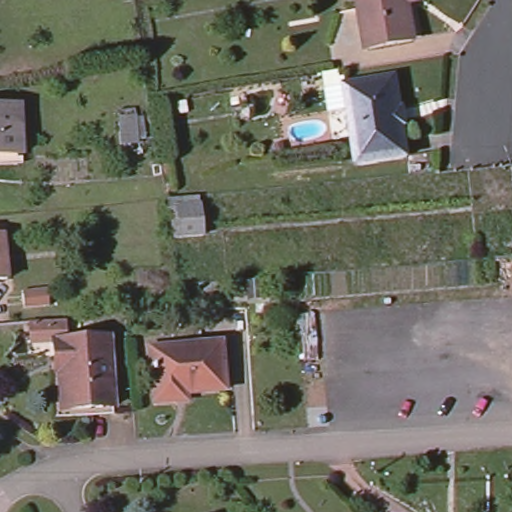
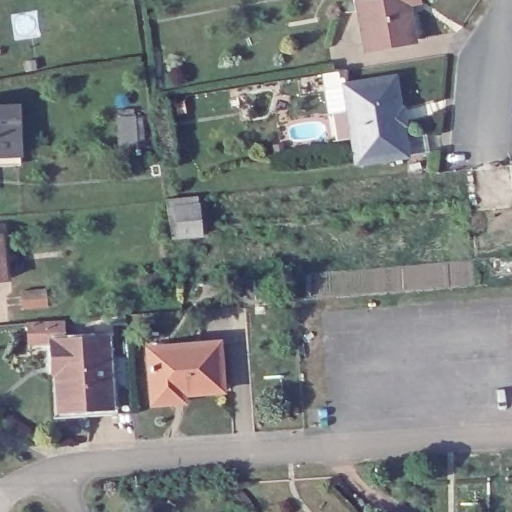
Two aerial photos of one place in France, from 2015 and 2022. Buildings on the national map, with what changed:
unchanged [(409,0),(406,1),(411,38),(367,46),(360,0),(409,0)]
unchanged [(393,77),(403,158),(354,165),(343,85),(393,77)]
unchanged [(0,106),(14,106),(15,152),(15,162),(0,163),(0,106)]
unchanged [(170,201),(199,197),(199,198),(205,234),(175,240),(170,201)]
unchanged [(107,335),(111,405),(68,408),(65,369),(54,370),(52,339),(107,335)]
unchanged [(152,406),(151,398),(147,350),(217,346),(222,393),(184,396),(184,404),(152,406)]

